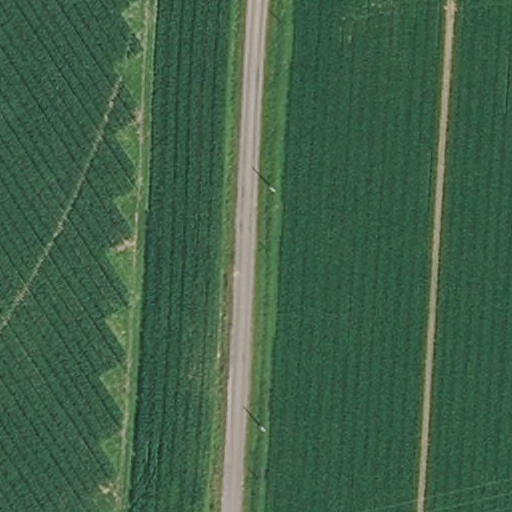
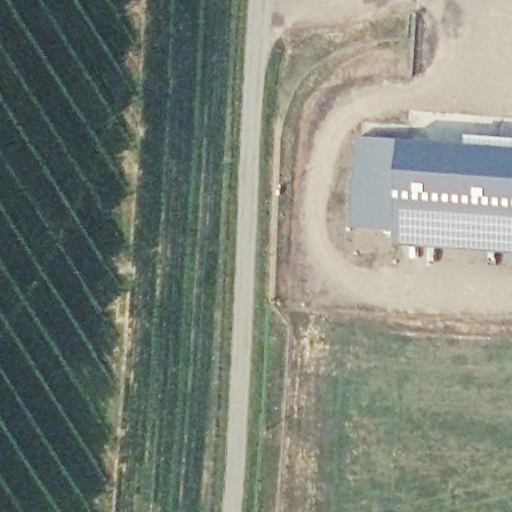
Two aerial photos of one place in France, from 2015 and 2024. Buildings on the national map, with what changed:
new [(400,245),(401,226),(354,224),(360,136),(406,140),(512,149),(512,252),(400,245)]

